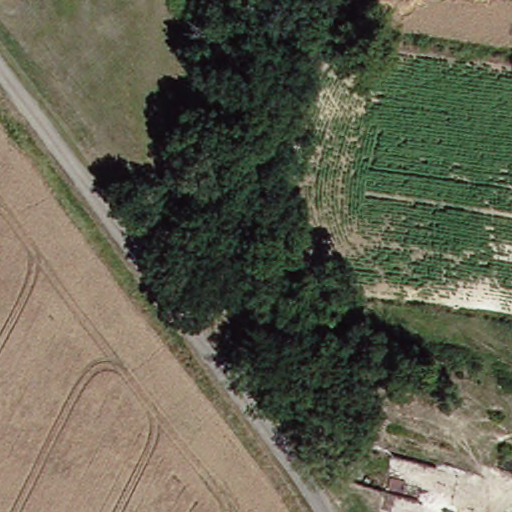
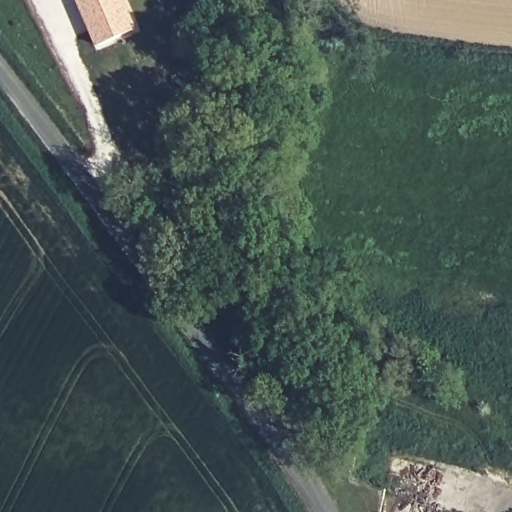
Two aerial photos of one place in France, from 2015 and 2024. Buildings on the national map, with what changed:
new [(97,46),(77,0),(128,0),(140,28),(97,46)]

